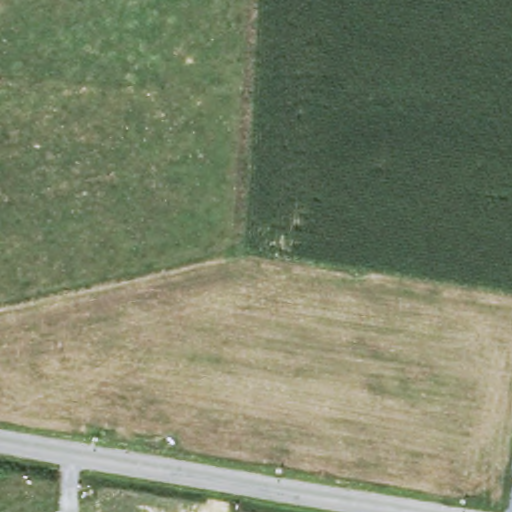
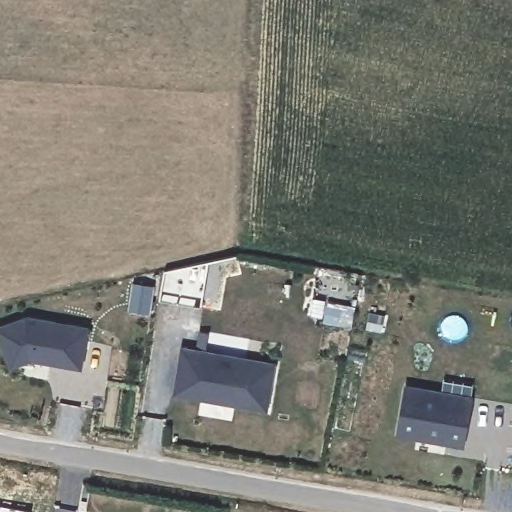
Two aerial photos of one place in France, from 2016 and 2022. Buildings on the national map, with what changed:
new [(22,323),(83,334),(75,373),(57,370),(58,366),(50,365),(45,368),(25,365),(5,372),(0,357),(0,331),(22,323)]
new [(179,355),(270,372),(261,417),(196,405),(170,400),(171,391),(179,355)]
new [(403,392),(468,405),(460,452),(430,446),(431,442),(415,438),(413,443),(394,438),(403,392)]

